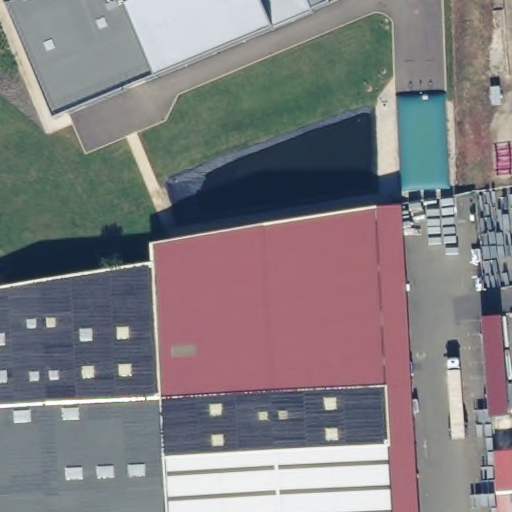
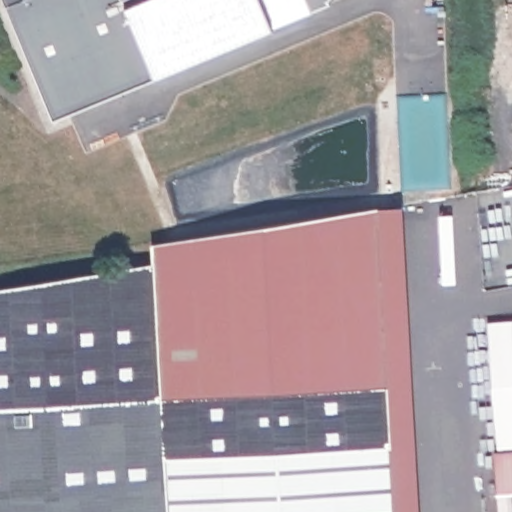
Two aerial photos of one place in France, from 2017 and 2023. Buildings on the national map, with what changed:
unchanged [(327,3),(154,79),(55,118),(6,0),(327,0),(326,0),(327,3)]
unchanged [(150,235),(400,208),(419,512),(0,512),(0,285),(155,269),(150,235)]
new [(495,450),(484,321),(512,318),(512,448),(495,450)]
unchanged [(497,512),(492,455),(512,453),(512,512),(497,512)]

